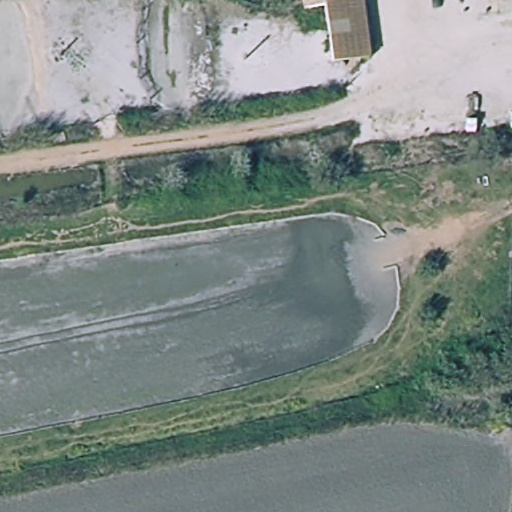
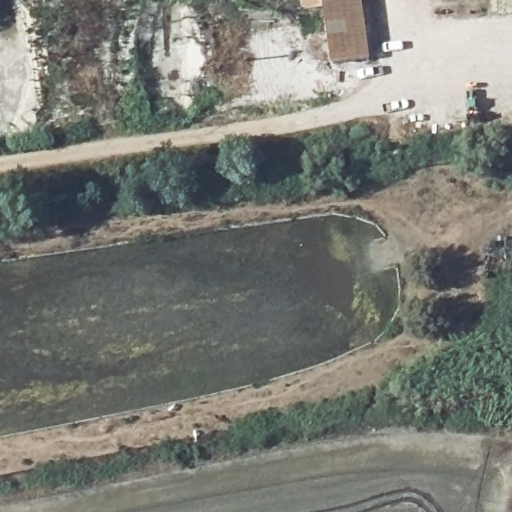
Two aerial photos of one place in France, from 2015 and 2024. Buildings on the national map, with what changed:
unchanged [(371,61),(334,66),(323,0),(363,0),(371,61)]

